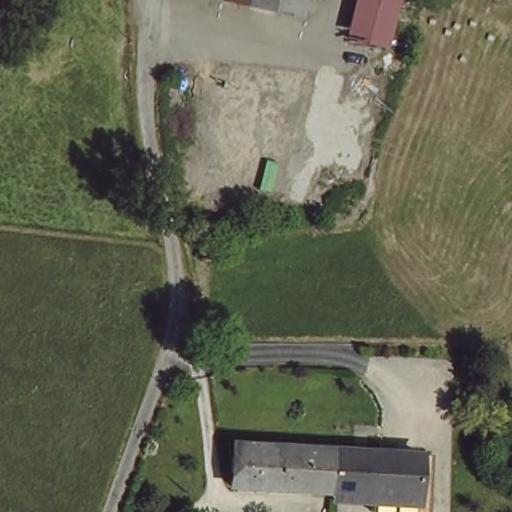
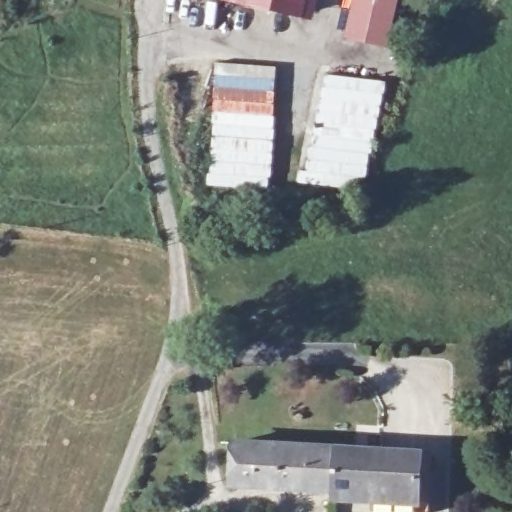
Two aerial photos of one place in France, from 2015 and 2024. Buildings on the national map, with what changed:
unchanged [(292,16),(233,0),(296,0),(292,16)]
unchanged [(393,51),(347,40),(355,0),(404,0),(393,51)]
new [(210,112),(212,61),(277,66),(275,145),(269,193),(205,186),(210,112)]
new [(297,169),(302,170),(322,72),(386,81),(365,192),(295,183),(297,169)]
unchanged [(227,481),(229,437),(327,444),(325,487),(227,481)]
unchanged [(368,447),(374,447),(390,448),(388,507),(369,506),(370,490),(325,487),(327,444),(368,447)]
unchanged [(426,450),(425,508),(388,507),(390,448),(426,450)]

